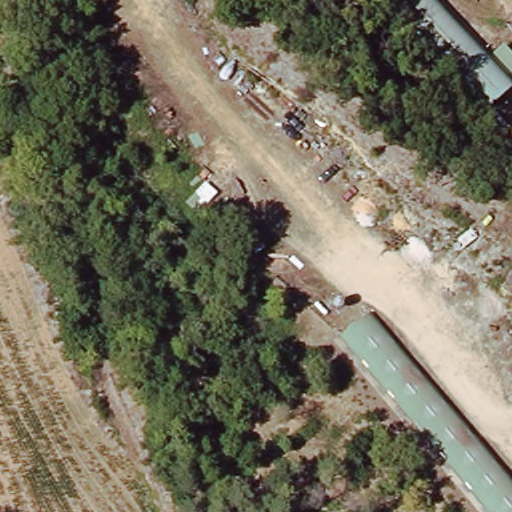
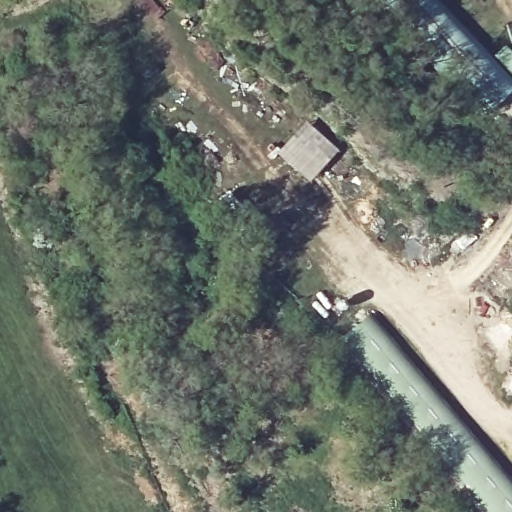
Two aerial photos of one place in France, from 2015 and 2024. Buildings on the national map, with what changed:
unchanged [(434,0),(511,102),(473,130),(376,0),(434,0)]
new [(307,121),(338,152),(307,183),(277,151),(307,121)]
unchanged [(352,328),(386,306),(512,493),(512,512),(474,512),(352,328)]

